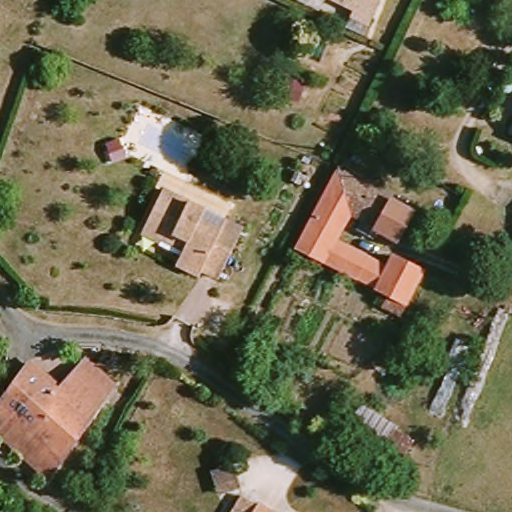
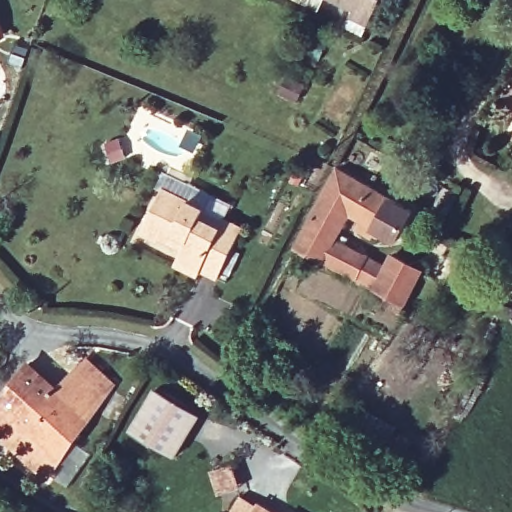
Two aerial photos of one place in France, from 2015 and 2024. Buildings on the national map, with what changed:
unchanged [(362,12),(365,7),(351,0),(390,0),(380,21),(362,12)]
unchanged [(286,75),(305,82),(298,98),(279,90),(286,75)]
unchanged [(312,247),(348,167),(421,202),(409,231),(397,227),(394,232),(388,231),(386,234),(368,227),(371,215),(362,211),(349,239),(400,262),(390,283),(312,247)]
unchanged [(189,259),(192,253),(196,242),(182,236),(157,224),(176,182),(218,202),(235,210),(257,220),(233,270),(218,264),(215,270),(189,259)]
unchanged [(390,283),(400,262),(405,251),(434,263),(420,297),(390,283)]
unchanged [(0,421),(40,362),(73,388),(93,365),(106,375),(119,386),(102,412),(72,459),(63,475),(46,460),(0,421)]
new [(200,416),(176,456),(130,429),(153,390),(200,416)]
unchanged [(356,426),(375,400),(428,440),(414,460),(356,426)]
unchanged [(255,480),(235,486),(228,464),(248,457),(255,480)]
unchanged [(255,490),(270,500),(272,498),(293,512),(242,512),(255,490)]

